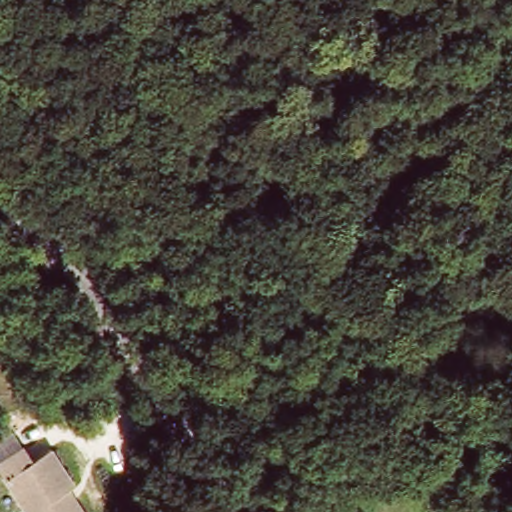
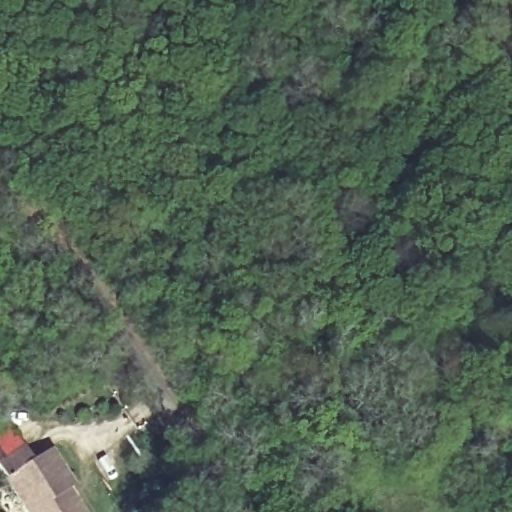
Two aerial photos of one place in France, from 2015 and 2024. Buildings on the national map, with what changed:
unchanged [(0,470),(0,464),(24,448),(32,461),(50,450),(74,487),(69,491),(75,502),(82,512),(27,512),(7,480),(0,470)]

